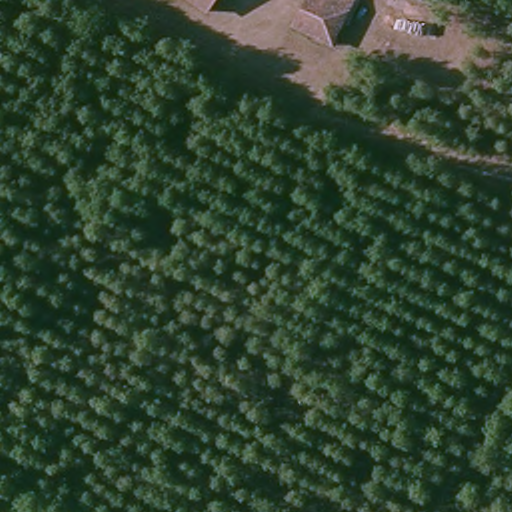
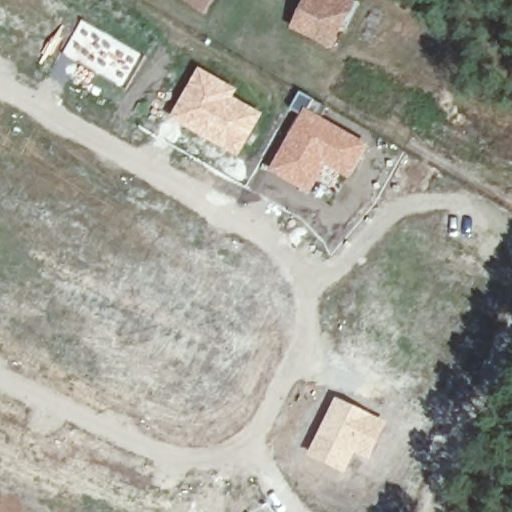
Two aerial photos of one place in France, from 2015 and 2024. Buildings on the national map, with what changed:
unchanged [(180,0),(211,0),(201,14),(180,0)]
unchanged [(346,0),(325,44),(290,27),(303,0),(346,0)]
new [(123,87),(62,52),(82,19),(142,54),(123,87)]
new [(234,98),(263,114),(239,157),(170,118),(198,68),(238,90),(234,98)]
new [(347,179),(325,167),(310,195),(269,172),(305,109),(367,144),(347,179)]
new [(370,460),(356,454),(346,474),(308,456),(336,398),(388,422),(370,460)]

